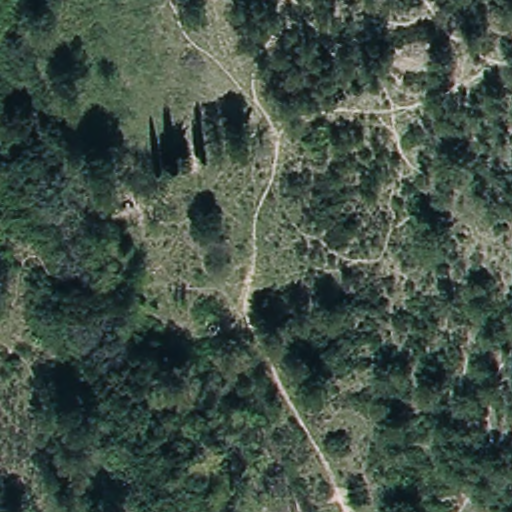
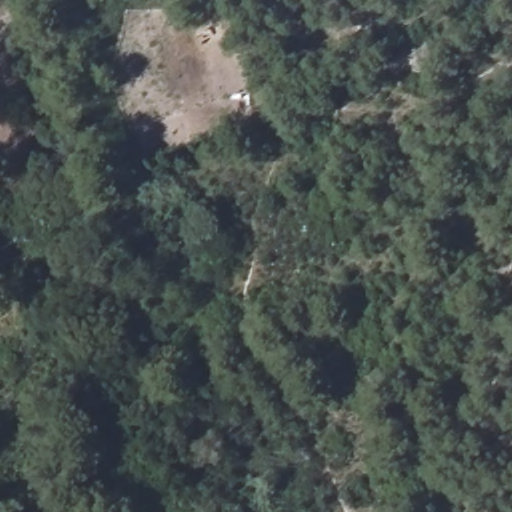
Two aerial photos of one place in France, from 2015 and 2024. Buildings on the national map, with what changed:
unchanged [(130,190),(137,209),(106,216),(102,195),(130,190)]

